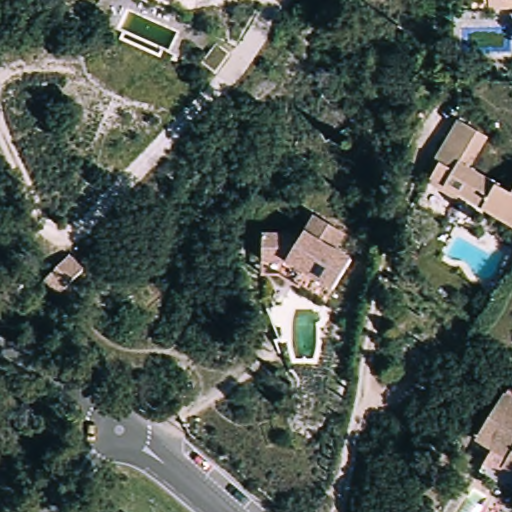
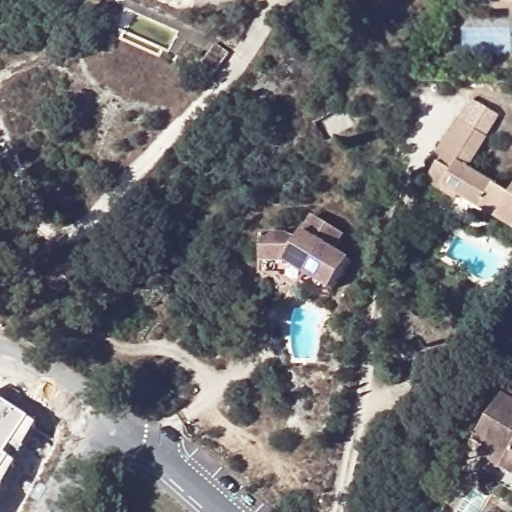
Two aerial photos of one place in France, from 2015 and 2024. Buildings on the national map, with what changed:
unchanged [(494,2),(478,2),(478,0),(512,0),(512,3),(494,4),(494,2)]
unchanged [(429,183),(440,164),(435,162),(459,121),(487,137),(468,169),(512,194),(512,226),(460,196),(457,200),(442,191),(429,183)]
unchanged [(290,232),(301,239),(317,212),(346,229),(336,246),(352,255),(335,284),(290,257),(265,257),(266,232),(290,232)]
unchanged [(62,263),(68,257),(83,271),(62,292),(47,278),(62,263)]
unchanged [(290,257),(335,284),(326,298),(282,272),(265,272),(265,257),(290,257)]
unchanged [(351,356),(347,375),(332,372),(336,352),(351,356)]
unchanged [(512,391),(512,465),(503,460),(509,451),(478,432),(505,387),(512,391)]
new [(36,428),(0,494),(0,405),(36,428)]

